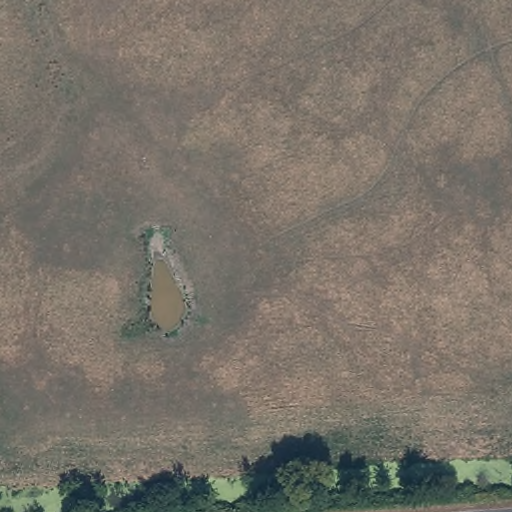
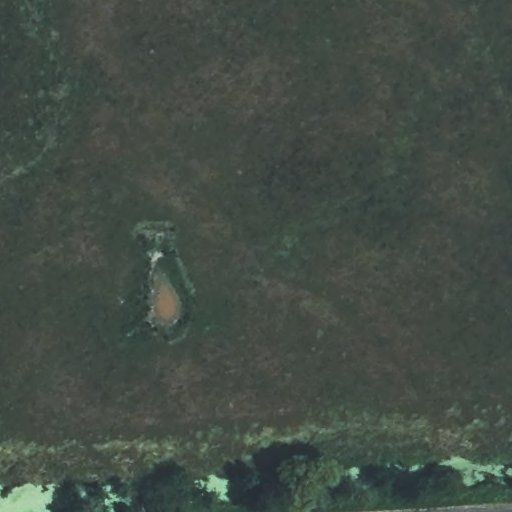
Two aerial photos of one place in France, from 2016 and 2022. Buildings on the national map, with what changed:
[]

